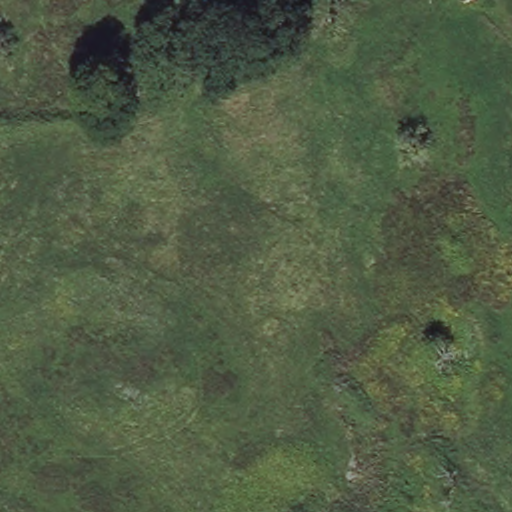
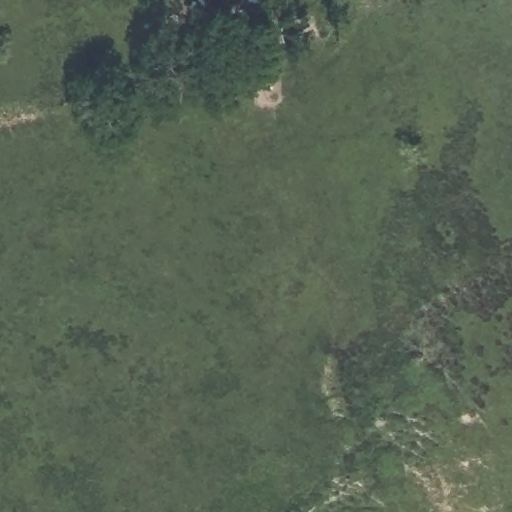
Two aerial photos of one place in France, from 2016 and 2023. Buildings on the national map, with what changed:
[]

